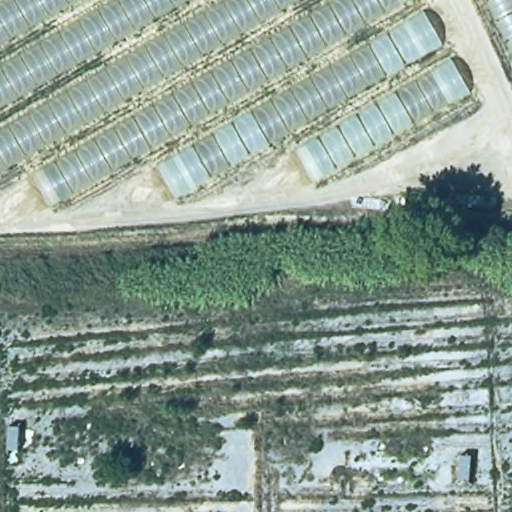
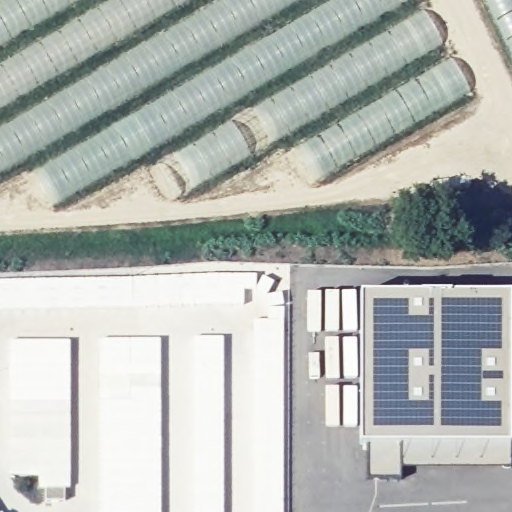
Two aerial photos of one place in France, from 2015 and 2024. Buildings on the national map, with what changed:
unchanged [(315,183),(285,138),(177,199),(150,155),(50,210),(20,163),(0,175),(0,0),(417,0),(468,94),(315,183)]
unchanged [(512,0),(512,49),(489,0),(512,0)]
new [(90,278),(178,274),(257,273),(255,291),(245,290),(245,305),(98,308),(95,281),(90,281),(90,278)]
new [(251,319),(266,319),(265,293),(283,292),(285,429),(285,512),(251,512),(250,455),(251,319)]
new [(361,295),(508,295),(508,443),(401,443),(401,478),(366,478),(366,443),(361,443),(361,295)]
new [(11,305),(11,309),(0,310),(0,304),(11,305)]
new [(192,336),(223,336),(224,512),(191,512),(192,336)]
new [(161,337),(162,512),(98,512),(98,337),(161,337)]
new [(7,338),(70,339),(70,488),(65,488),(65,500),(45,501),(43,489),(37,489),(37,477),(7,477),(7,338)]

